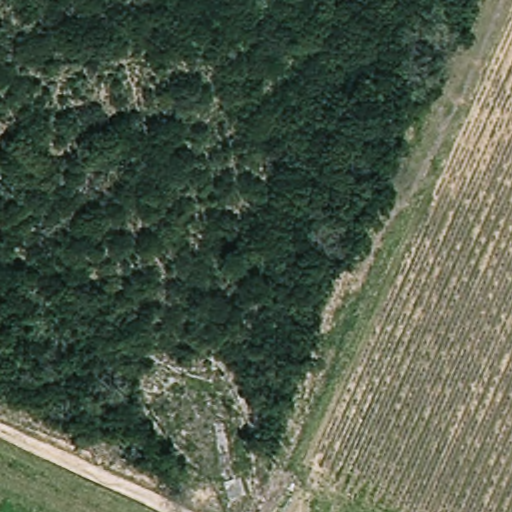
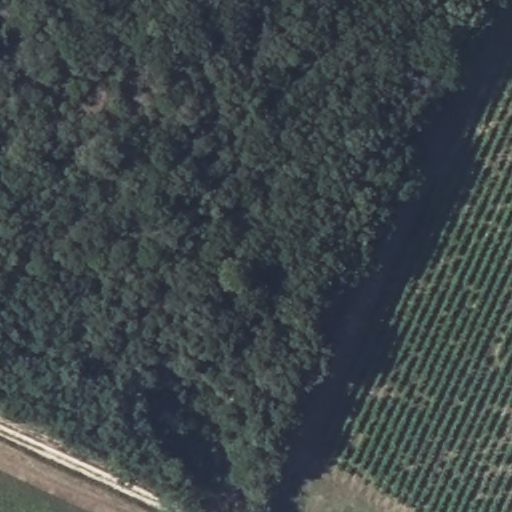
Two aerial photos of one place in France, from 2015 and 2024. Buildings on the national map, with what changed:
unchanged [(237,489),(239,488),(247,486),(252,485),(257,500),(248,502),(243,504),(241,505),(237,489)]

